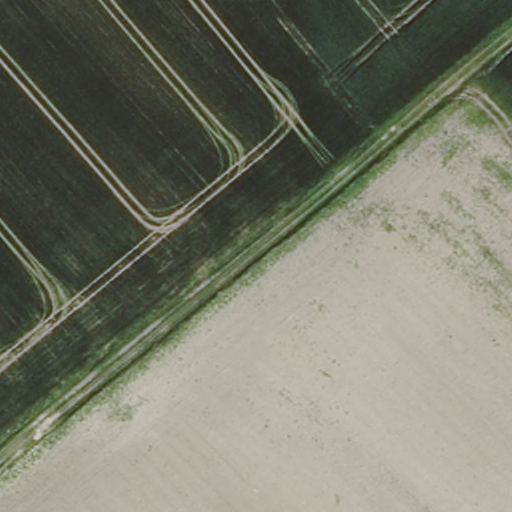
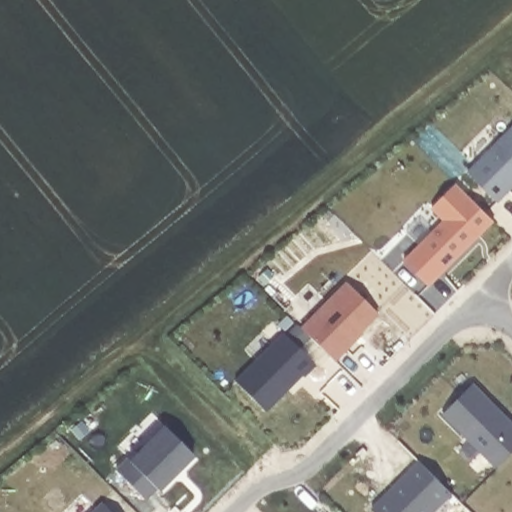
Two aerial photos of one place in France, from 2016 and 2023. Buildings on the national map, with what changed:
new [(499,203),(467,171),(512,126),(512,189),(499,203)]
new [(443,221),(431,209),(457,183),(496,221),(431,288),(403,260),(443,221)]
new [(346,281),(379,315),(365,329),(366,330),(335,361),(301,327),(346,281)]
new [(283,332),(317,365),(305,377),(303,375),(267,412),(235,380),(283,332)]
new [(512,422),(512,455),(498,470),(443,415),(474,382),(512,422)]
new [(129,459),(163,425),(194,457),(160,490),(158,490),(146,500),(117,470),(129,459)]
new [(419,461),(454,495),(435,512),(375,512),(371,507),(419,461)]
new [(102,502),(111,512),(92,512),(102,502)]

